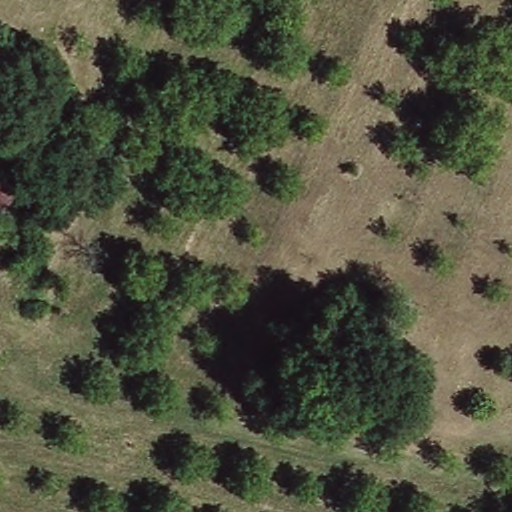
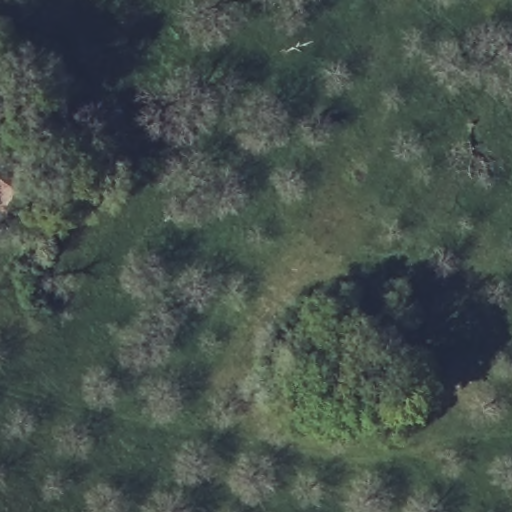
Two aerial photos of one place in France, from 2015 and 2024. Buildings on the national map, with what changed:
unchanged [(21,177),(0,203),(0,160),(21,177)]

